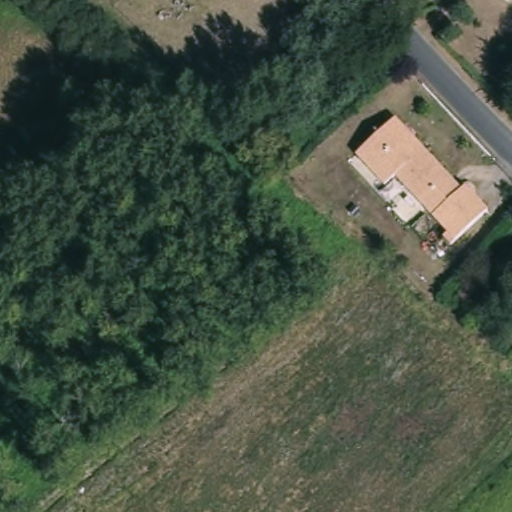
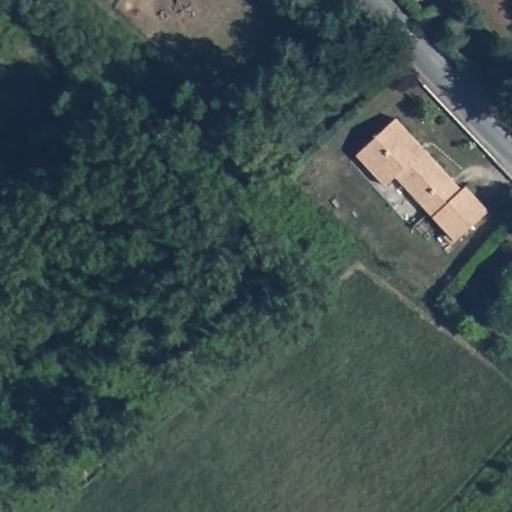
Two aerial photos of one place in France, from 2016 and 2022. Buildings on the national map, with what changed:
unchanged [(512,5),(506,0),(512,0),(512,5)]
unchanged [(388,125),(457,193),(461,189),(485,212),(449,248),(441,241),(445,237),(390,183),(380,193),(350,164),(388,125)]

